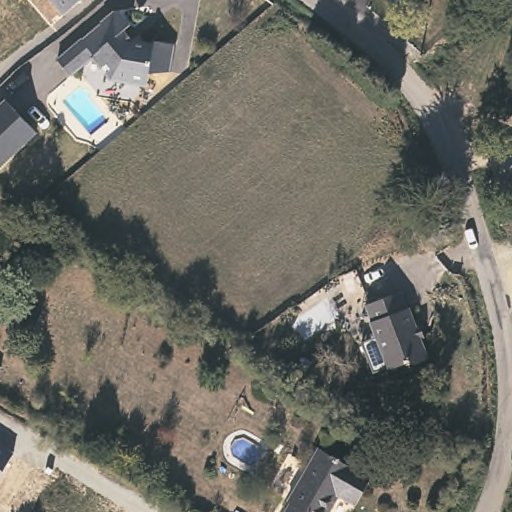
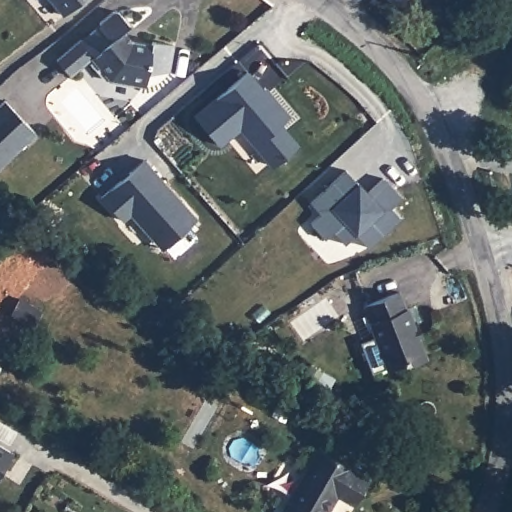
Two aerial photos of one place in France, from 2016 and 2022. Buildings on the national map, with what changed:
unchanged [(66,3),(64,0),(70,0),(66,3)]
unchanged [(395,5),(389,0),(401,0),(395,5)]
unchanged [(124,25),(119,30),(130,44),(142,47),(155,50),(159,47),(175,50),(169,75),(150,75),(149,84),(109,73),(95,54),(72,71),(57,53),(75,40),(84,40),(93,31),(94,25),(111,10),(124,25)]
new [(247,70),(288,117),(280,122),(298,142),(271,166),(240,130),(222,145),(195,112),(247,70)]
unchanged [(40,138),(0,170),(0,109),(11,100),(40,138)]
new [(144,160),(195,219),(162,247),(132,211),(122,219),(102,197),(144,160)]
new [(398,219),(366,247),(356,235),(353,232),(343,243),(332,230),(324,237),(310,222),(320,214),(309,201),(343,170),(355,182),(357,180),(368,191),(381,179),(400,196),(387,207),(398,219)]
unchanged [(414,357),(412,353),(389,363),(370,320),(373,318),(365,300),(395,287),(402,302),(405,301),(411,314),(417,311),(423,323),(416,327),(428,352),(414,357)]
unchanged [(14,452),(0,474),(0,444),(14,452)]
unchanged [(284,503),(313,445),(361,467),(349,494),(335,487),(323,512),(283,512),(286,505),(284,503)]

